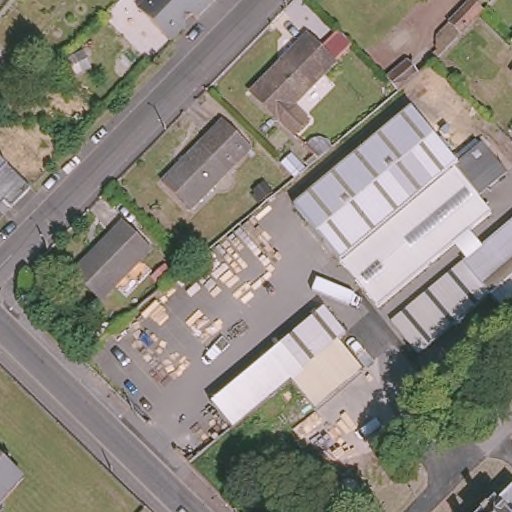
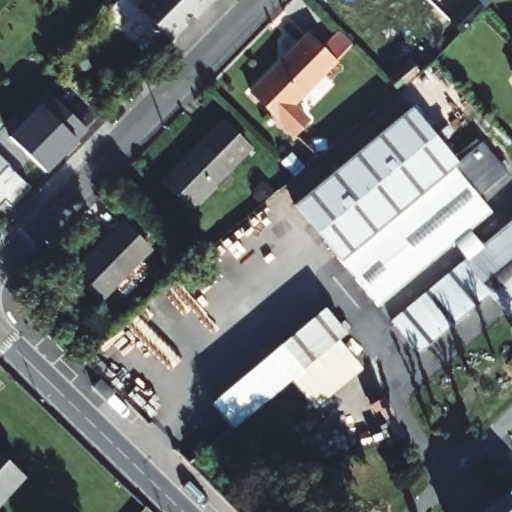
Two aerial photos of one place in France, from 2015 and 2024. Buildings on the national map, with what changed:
unchanged [(144,0),(212,0),(195,16),(191,12),(184,11),(182,23),(169,36),(138,6),(144,0)]
unchanged [(469,0),(480,11),(479,12),(458,33),(447,22),(469,0)]
unchanged [(343,41),(325,61),(327,63),(315,74),(322,83),(302,104),(293,96),(284,106),(299,121),(286,134),(243,93),(299,36),(312,48),(331,29),(343,41)]
unchanged [(508,37),(512,33),(512,41),(508,37)]
unchanged [(416,73),(395,91),(384,78),(406,61),(416,73)]
unchanged [(510,67),(512,64),(512,69),(510,67)]
new [(47,173),(9,136),(40,104),(44,107),(54,97),(87,131),(47,173)]
unchanged [(435,255),(380,301),(296,200),(413,103),(460,159),(485,139),(509,168),(480,192),(492,208),(435,255)]
unchanged [(220,122),(247,149),(187,210),(159,182),(220,122)]
unchanged [(9,205),(0,197),(0,158),(28,186),(9,205)]
unchanged [(506,314),(486,291),(415,348),(389,316),(461,256),(512,213),(512,308),(506,314)]
unchanged [(125,217),(152,244),(103,294),(75,267),(125,217)]
unchanged [(339,340),(304,369),(284,345),(329,309),(348,333),(339,340)]
unchanged [(339,340),(362,368),(316,407),(292,379),(304,369),(339,340)]
unchanged [(304,369),(292,379),(234,427),(215,403),(284,345),(304,369)]
unchanged [(0,501),(0,453),(24,475),(0,501)]
unchanged [(499,498),(512,485),(512,512),(482,512),(497,498),(499,498)]

